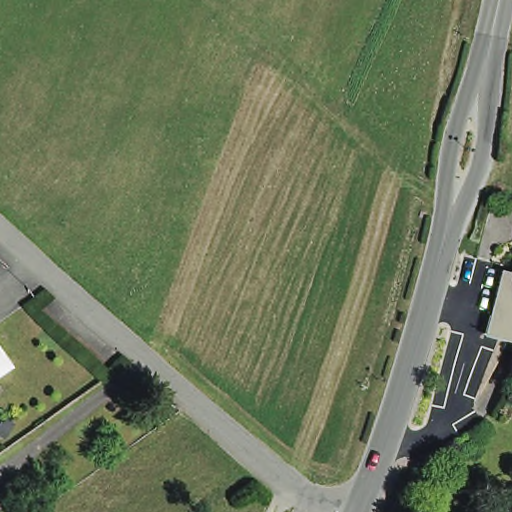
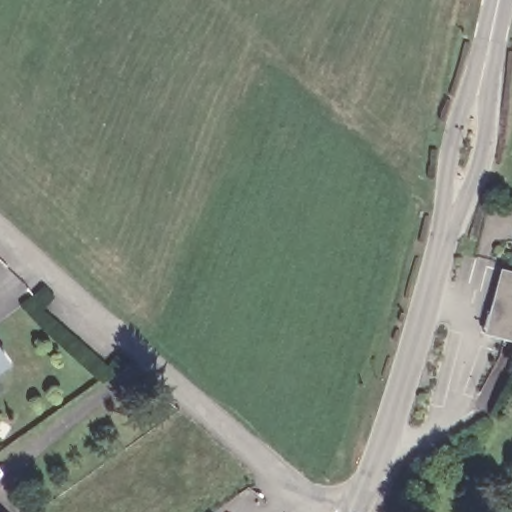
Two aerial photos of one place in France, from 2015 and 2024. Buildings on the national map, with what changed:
unchanged [(477,343),(497,277),(506,280),(512,255),(512,350),(477,343)]

